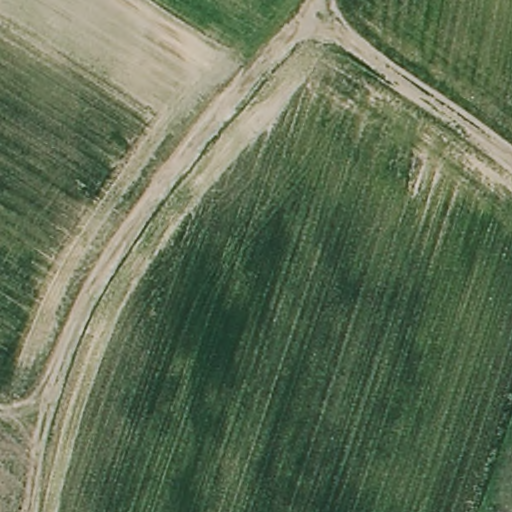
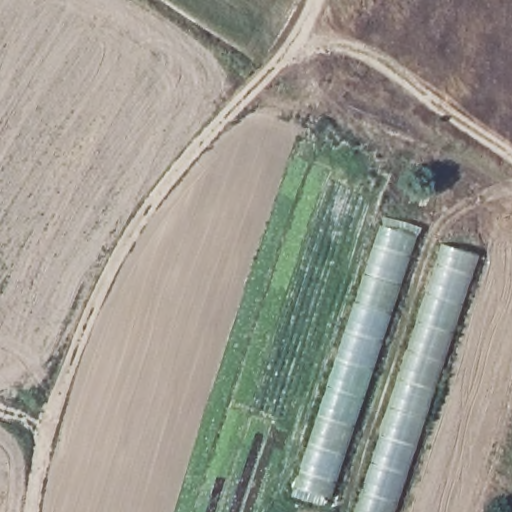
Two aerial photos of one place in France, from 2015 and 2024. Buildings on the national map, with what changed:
new [(292,487),(379,224),(418,236),(328,497),(292,487)]
new [(480,255),(395,512),(353,512),(439,243),(480,255)]

